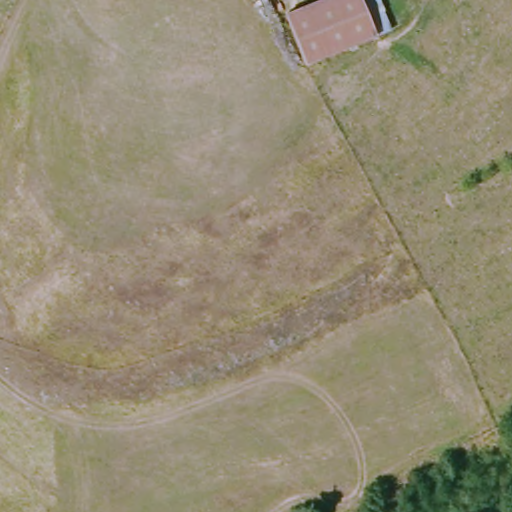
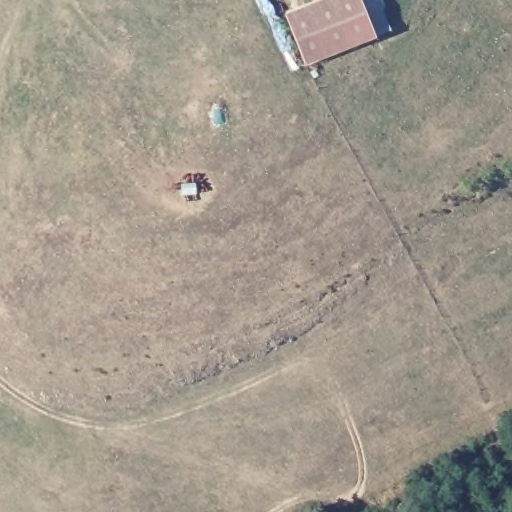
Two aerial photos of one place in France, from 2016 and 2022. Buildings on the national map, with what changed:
unchanged [(374,38),(303,66),(283,17),(326,0),(359,0),(374,38)]

